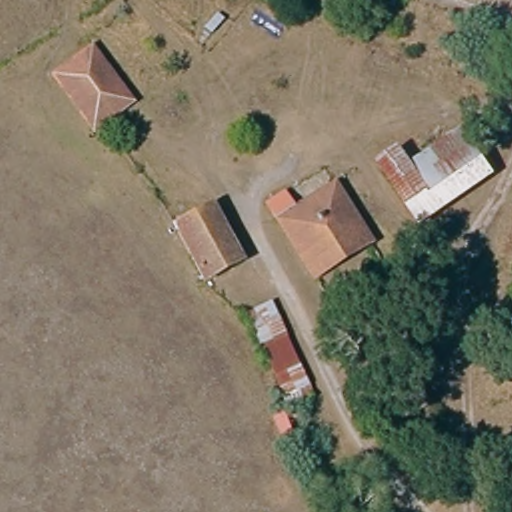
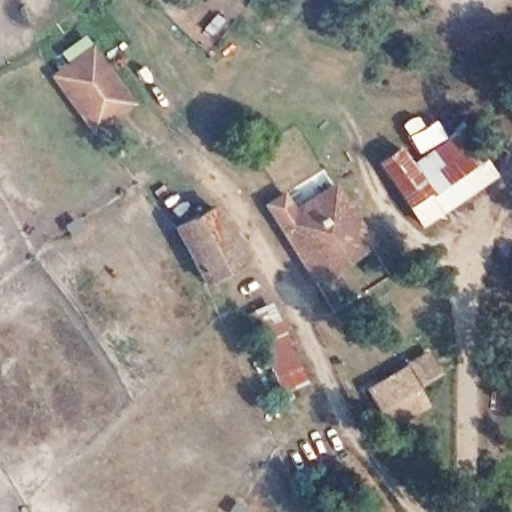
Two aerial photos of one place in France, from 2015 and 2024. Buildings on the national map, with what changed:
unchanged [(91,51),(131,105),(91,136),(49,81),(91,51)]
unchanged [(374,164),(399,146),(413,164),(465,134),(498,179),(422,233),(374,164)]
unchanged [(286,202),(293,213),(334,189),(373,248),(317,285),(281,229),(271,212),(286,202)]
unchanged [(176,235),(210,213),(239,260),(205,280),(176,235)]
unchanged [(282,332),(309,389),(285,402),(258,344),(282,332)]
new [(388,429),(366,388),(429,349),(442,373),(418,385),(430,406),(388,429)]

